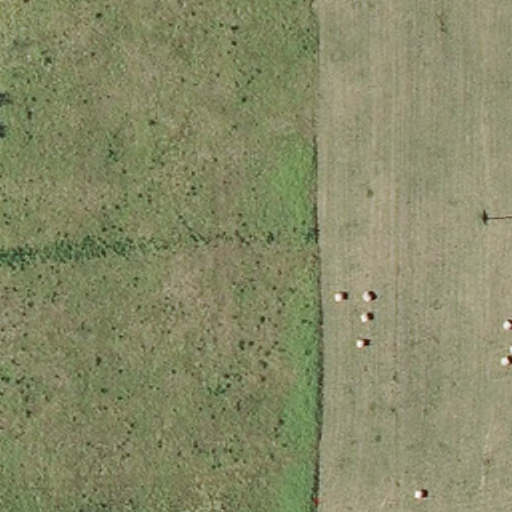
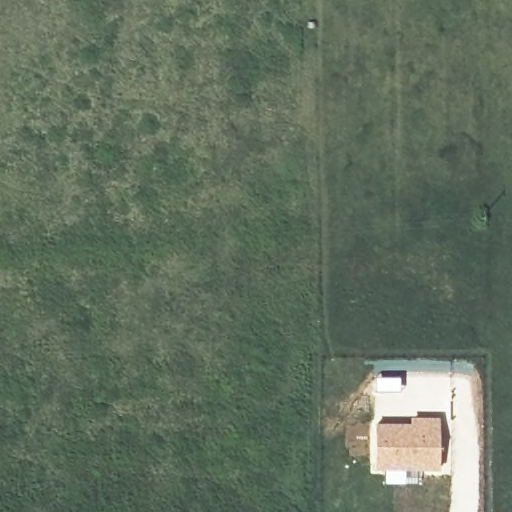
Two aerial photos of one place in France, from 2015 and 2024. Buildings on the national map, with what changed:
new [(374,422),(410,423),(411,417),(440,417),(440,470),(373,470),(374,422)]

